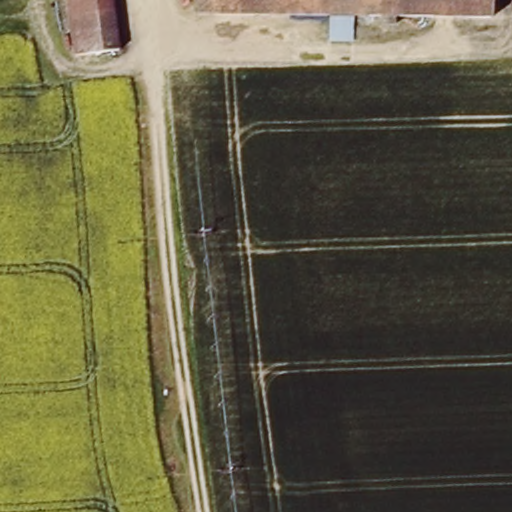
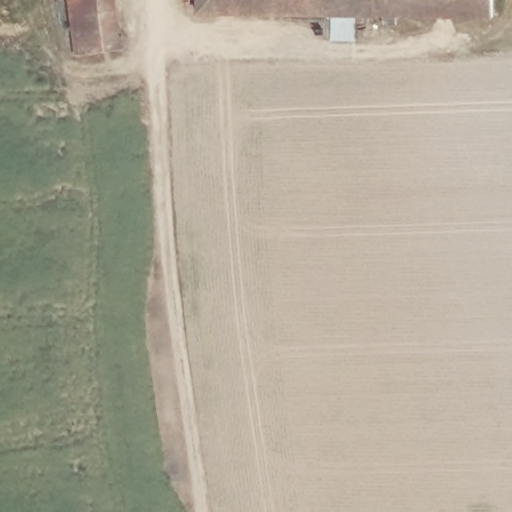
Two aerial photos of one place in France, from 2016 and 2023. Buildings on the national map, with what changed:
unchanged [(63,10),(61,0),(104,0),(105,5),(63,10)]
unchanged [(492,19),(191,15),(192,0),(493,0),(492,19)]
unchanged [(105,5),(112,45),(73,55),(63,10),(105,5)]

